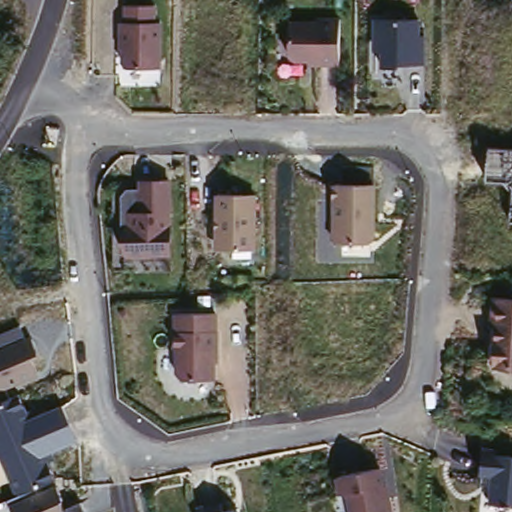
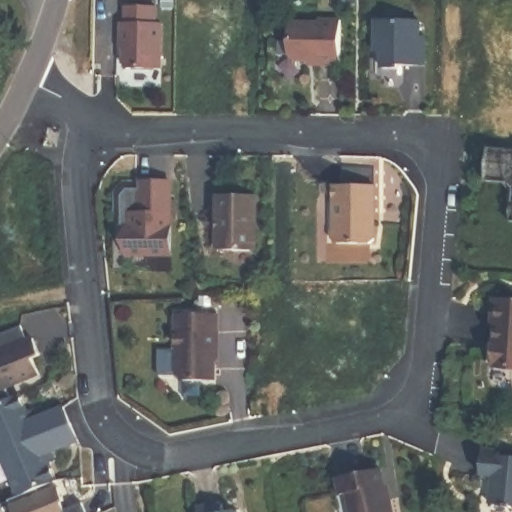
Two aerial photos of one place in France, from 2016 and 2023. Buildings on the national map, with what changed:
unchanged [(123,22),(123,6),(154,7),(154,24),(161,23),(162,70),(129,70),(119,60),(120,22),(123,22)]
unchanged [(373,20),(421,21),(420,37),(423,37),(423,69),(397,66),(397,69),(381,70),(380,52),(373,53),(373,20)]
unchanged [(287,22),(337,21),(337,67),(288,67),(287,22)]
unchanged [(512,150),(512,182),(487,181),(489,147),(512,150)]
unchanged [(172,226),(172,257),(127,259),(123,221),(121,198),(127,190),(138,190),(138,181),(172,180),(172,226)]
unchanged [(375,190),(376,244),(332,242),(332,190),(375,190)]
unchanged [(256,199),(255,252),(217,251),(215,198),(256,199)]
unchanged [(512,202),(512,223),(511,222),(512,202)]
unchanged [(512,302),(512,368),(486,366),(492,301),(512,302)]
unchanged [(219,362),(216,361),(216,380),(184,383),(173,373),(172,315),(217,314),(219,362)]
unchanged [(0,351),(0,334),(22,325),(27,340),(34,338),(42,357),(35,360),(41,377),(5,391),(10,400),(22,393),(32,418),(65,403),(80,441),(52,453),(55,462),(50,463),(57,481),(54,483),(64,512),(14,512),(11,504),(18,501),(0,457),(0,353),(1,352),(0,351)]
unchanged [(512,455),(512,508),(482,506),(488,452),(512,455)]
unchanged [(377,470),(387,512),(350,512),(341,475),(377,470)]
unchanged [(229,505),(230,512),(199,512),(197,507),(229,505)]

